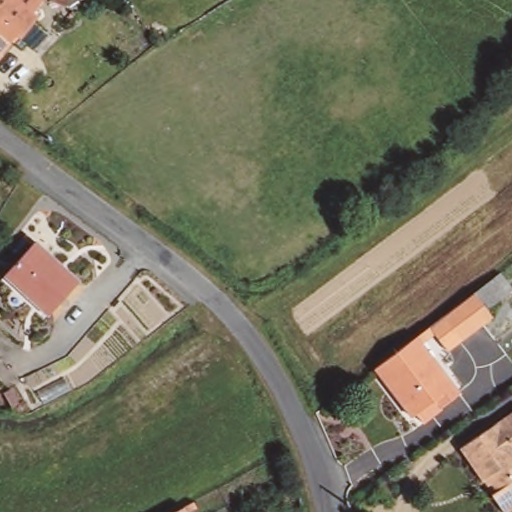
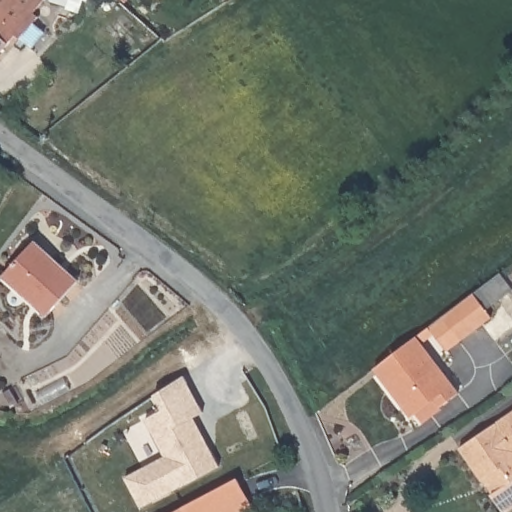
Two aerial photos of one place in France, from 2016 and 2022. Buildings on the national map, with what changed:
unchanged [(41,7),(32,17),(37,21),(19,43),(14,40),(0,55),(0,0),(37,0),(41,7)]
unchanged [(92,4),(87,7),(68,2),(63,10),(50,5),(51,0),(93,0),(92,4)]
unchanged [(55,321),(4,276),(35,242),(85,288),(55,321)]
unchanged [(421,415),(417,417),(380,369),(420,337),(478,293),(498,277),(512,294),(491,310),(497,317),(464,342),(451,325),(426,344),(463,394),(444,409),(427,423),(421,415)]
new [(145,419),(162,410),(154,395),(183,376),(202,413),(193,418),(210,451),(219,467),(141,508),(125,478),(165,457),(145,419)]
unchanged [(17,405),(11,408),(3,393),(10,389),(17,405)]
unchanged [(503,512),(491,495),(495,491),(487,478),(482,482),(459,448),(512,412),(512,508),(507,512),(503,512)]
new [(197,502),(237,480),(252,507),(241,512),(192,512),(201,508),(197,502)]
unchanged [(189,507),(197,502),(201,508),(192,512),(178,512),(182,510),(189,507)]

